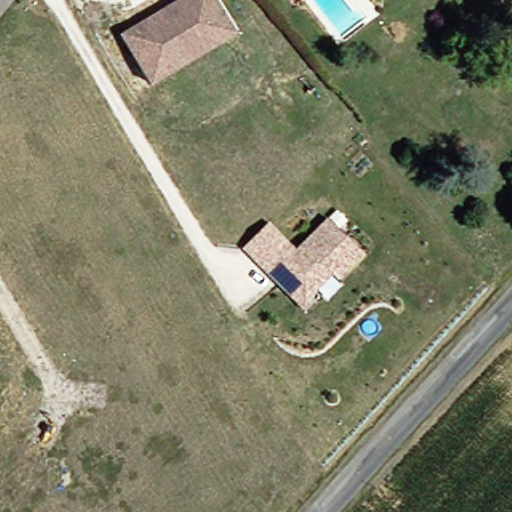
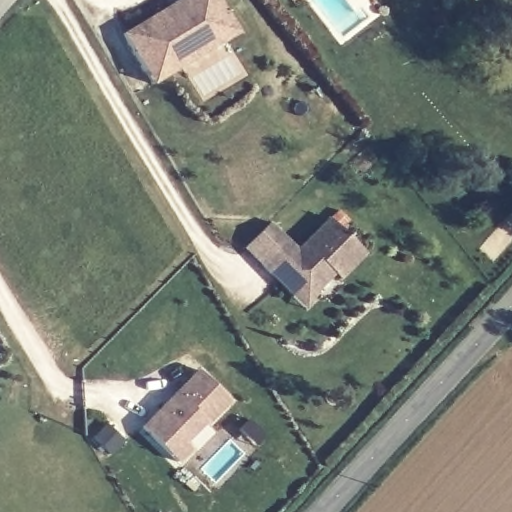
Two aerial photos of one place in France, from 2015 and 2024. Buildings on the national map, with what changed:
unchanged [(217,27),(142,72),(120,34),(178,0),(217,0),(221,8),(210,15),(217,27)]
unchanged [(236,33),(150,85),(142,72),(217,27),(210,15),(221,8),(236,33)]
unchanged [(269,275),(257,262),(285,237),(295,248),(330,217),(364,255),(338,280),(303,313),(269,275)]
new [(231,402),(184,445),(189,451),(176,463),(140,428),(196,369),(231,402)]

